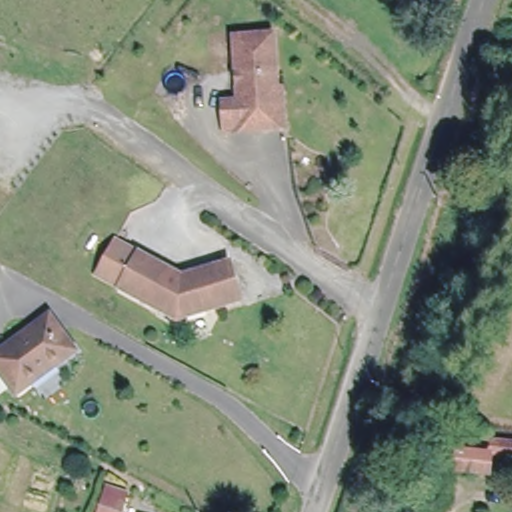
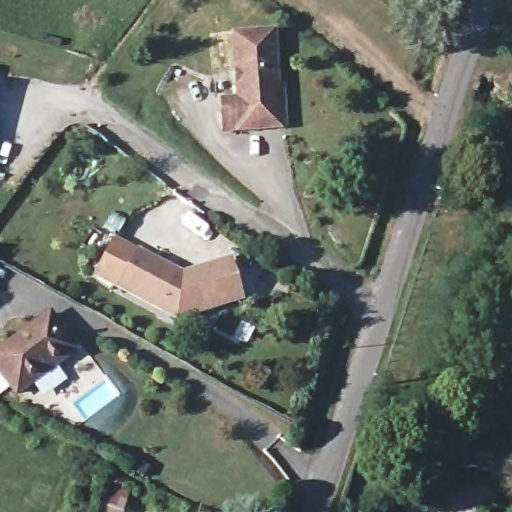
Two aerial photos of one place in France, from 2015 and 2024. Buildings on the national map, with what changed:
unchanged [(215,101),(232,101),(231,81),(238,81),(236,34),(270,34),(272,109),(250,110),(251,126),(226,127),(216,127),(216,120),(215,101)]
unchanged [(232,306),(216,309),(179,318),(96,276),(117,242),(178,274),(205,269),(221,265),(232,306)]
unchanged [(0,376),(0,349),(45,317),(73,354),(15,396),(0,376)]
unchanged [(512,461),(494,460),(493,473),(456,468),(463,433),(512,440),(512,461)]
unchanged [(106,483),(127,495),(120,512),(94,512),(106,483)]
unchanged [(416,512),(405,512),(410,507),(416,512)]

